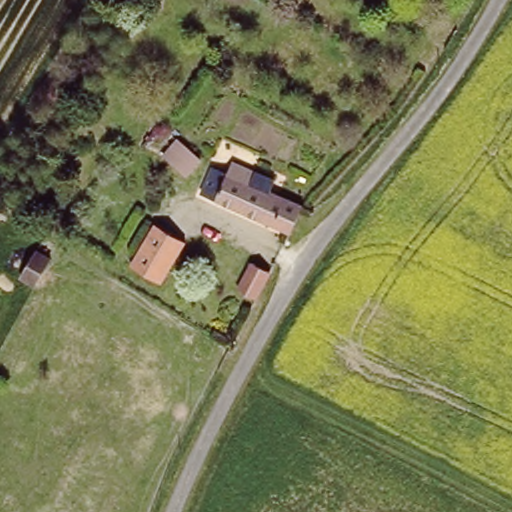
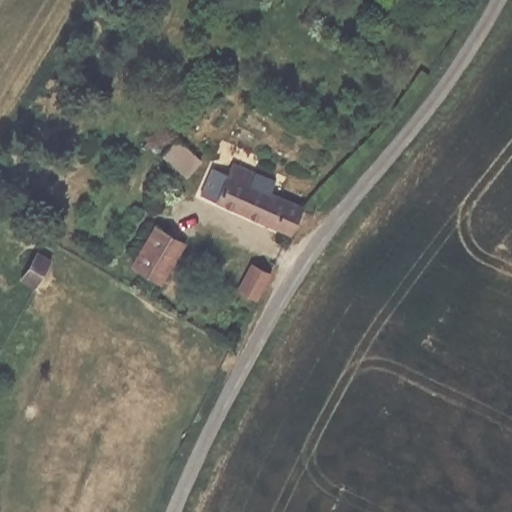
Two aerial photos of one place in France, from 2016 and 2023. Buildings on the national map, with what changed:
unchanged [(199,161),(186,180),(168,167),(181,148),(199,161)]
unchanged [(277,179),(271,191),(303,205),(290,231),(202,190),(214,164),(228,171),(233,159),(277,179)]
unchanged [(158,221),(189,239),(164,281),(134,263),(158,221)]
unchanged [(40,254),(56,263),(43,286),(28,278),(40,254)]
unchanged [(276,279),(263,302),(245,292),(259,269),(276,279)]

